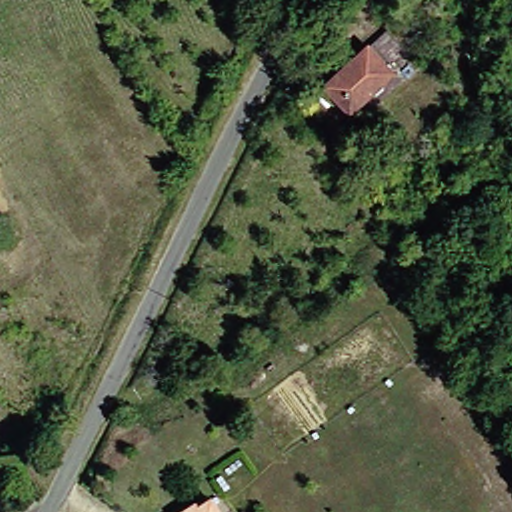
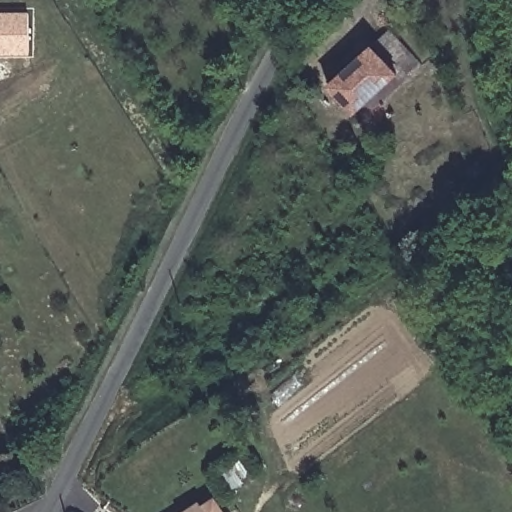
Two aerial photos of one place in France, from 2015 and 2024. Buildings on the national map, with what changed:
new [(0,56),(0,11),(31,10),(30,56),(0,56)]
unchanged [(351,106),(331,74),(395,26),(422,72),(401,87),(358,118),(351,106)]
unchanged [(202,500),(206,507),(220,498),(228,512),(182,512),(202,500)]

